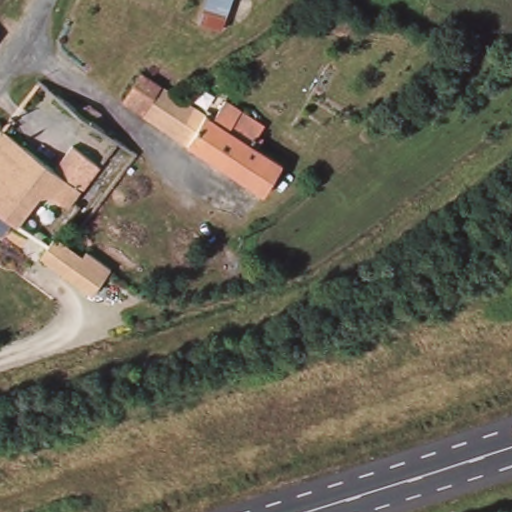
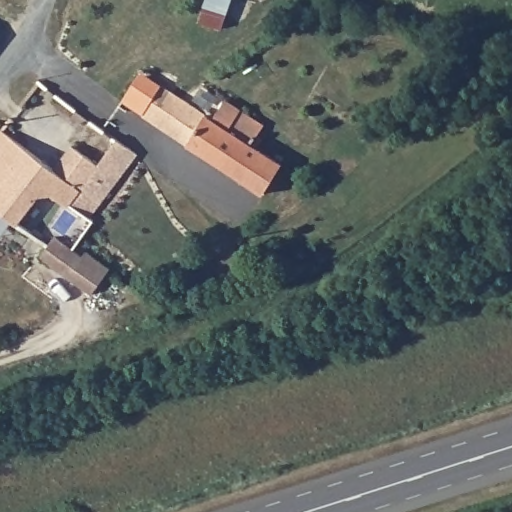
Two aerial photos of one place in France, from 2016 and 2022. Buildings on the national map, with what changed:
unchanged [(206,0),(233,0),(223,29),(199,21),(206,0)]
unchanged [(141,71),(171,91),(207,114),(189,144),(123,101),(141,71)]
unchanged [(214,119),(225,99),(265,124),(258,135),(263,139),(258,146),(283,163),(264,194),(189,144),(207,114),(214,119)]
unchanged [(54,170),(73,144),(99,166),(69,208),(53,196),(40,195),(17,224),(0,211),(0,133),(2,130),(54,170)]
unchanged [(59,234),(110,269),(92,294),(40,258),(59,234)]

